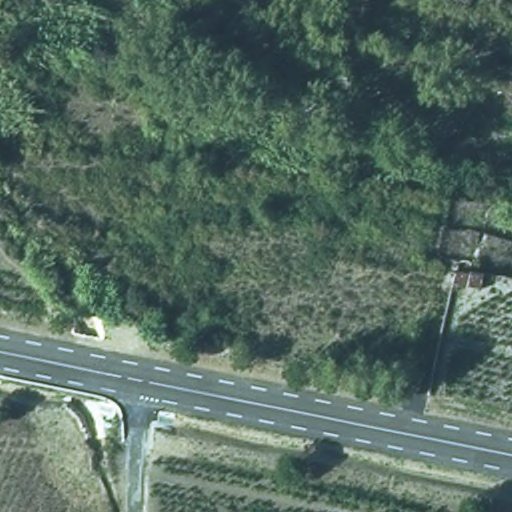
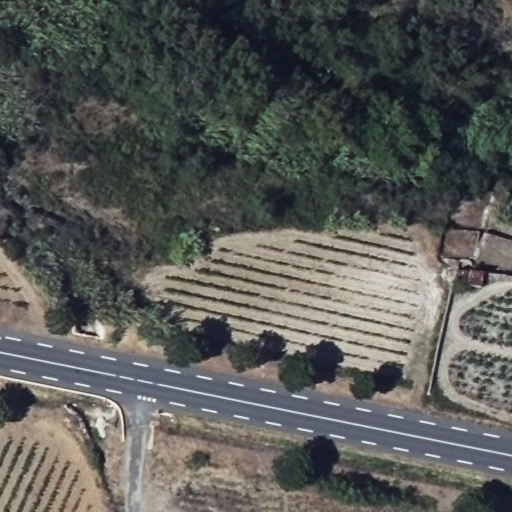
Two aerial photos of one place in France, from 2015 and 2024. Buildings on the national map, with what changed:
unchanged [(458,264),(489,267),(486,285),(455,282),(458,264)]

